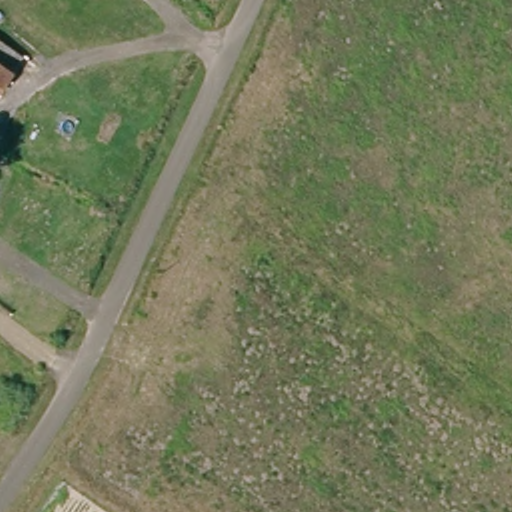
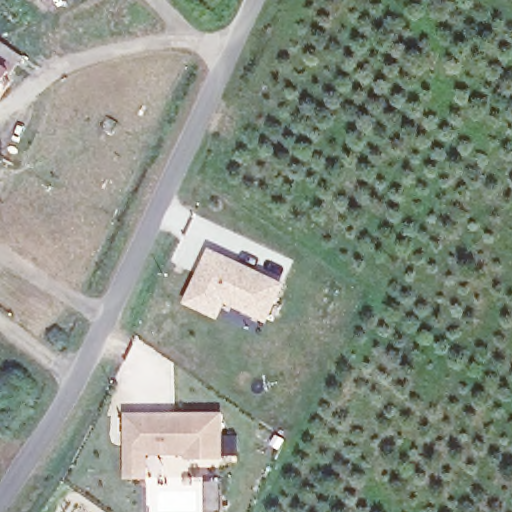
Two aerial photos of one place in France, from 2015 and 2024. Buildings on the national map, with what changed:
unchanged [(0,42),(16,54),(4,71),(0,77),(0,42)]
new [(267,323),(226,303),(218,319),(183,303),(209,248),(285,283),(267,323)]
new [(224,458),(185,460),(186,454),(148,454),(148,478),(125,478),(124,413),(223,412),(224,458)]

